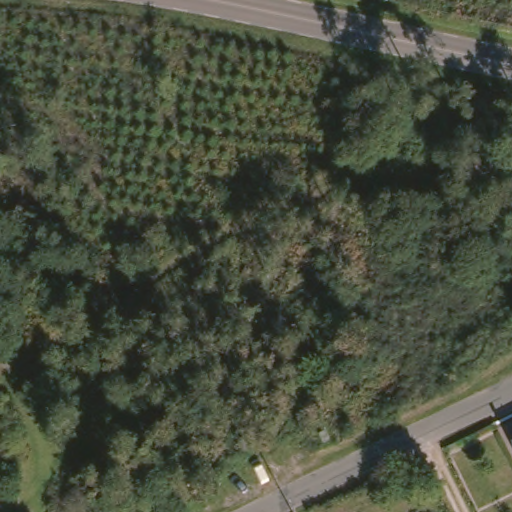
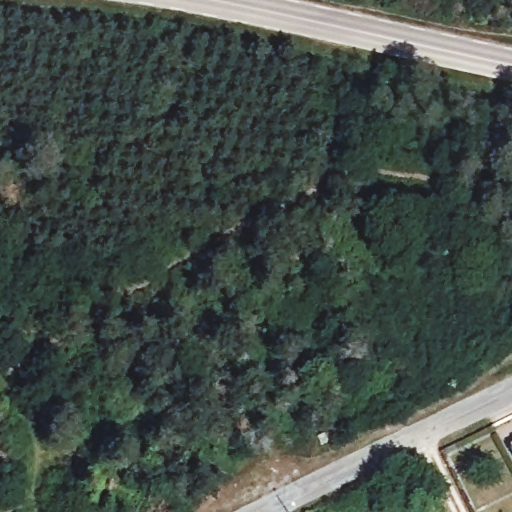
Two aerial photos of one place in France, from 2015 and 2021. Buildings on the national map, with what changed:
unchanged [(512,441),(512,451),(508,443),(512,441)]

